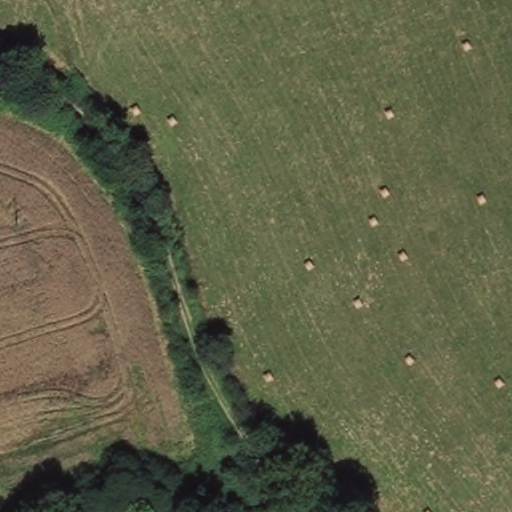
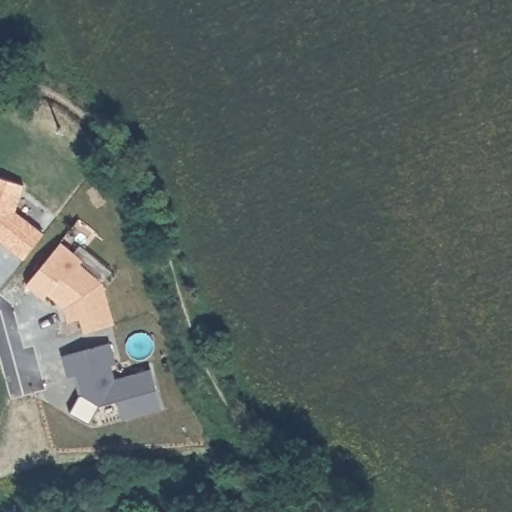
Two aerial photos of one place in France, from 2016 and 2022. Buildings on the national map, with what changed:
new [(83,331),(79,317),(67,321),(64,307),(47,293),(41,297),(25,284),(61,242),(84,261),(80,264),(104,283),(113,324),(83,331)]
new [(120,417),(115,400),(97,405),(88,422),(70,411),(79,397),(73,375),(66,377),(62,356),(110,343),(115,364),(110,366),(114,379),(150,370),(160,407),(120,417)]

